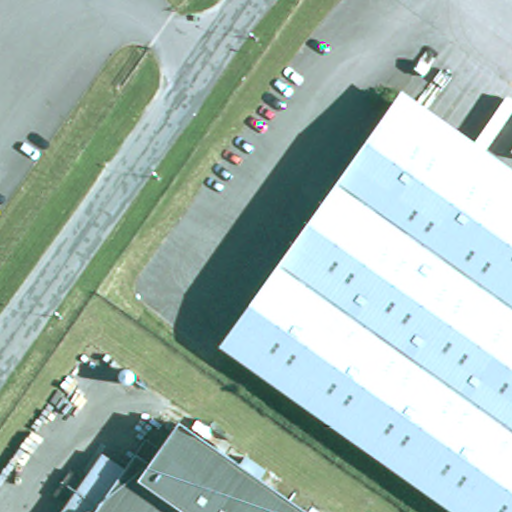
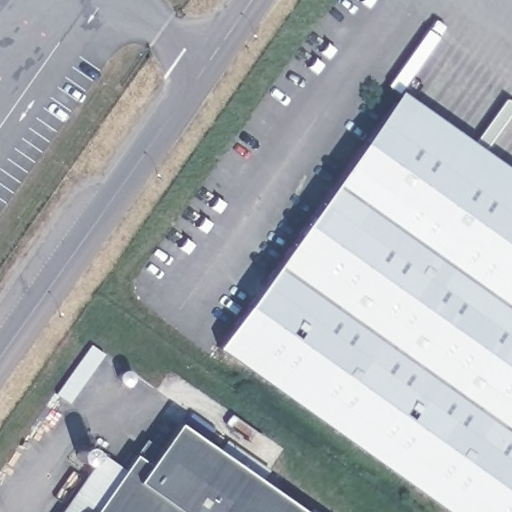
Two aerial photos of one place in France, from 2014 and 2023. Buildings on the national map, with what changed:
unchanged [(455,512),(222,343),(399,100),(512,178),(512,512),(455,512)]
unchanged [(246,456),(268,472),(262,480),(307,512),(92,512),(125,467),(135,451),(145,437),(160,447),(180,422),(239,465),(246,456)]
unchanged [(125,467),(92,512),(58,512),(102,451),(125,467)]

